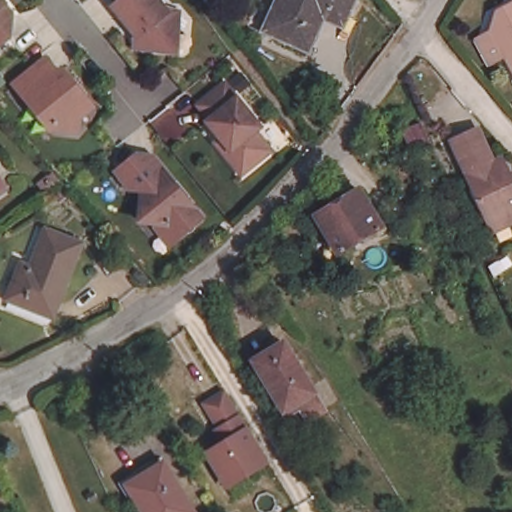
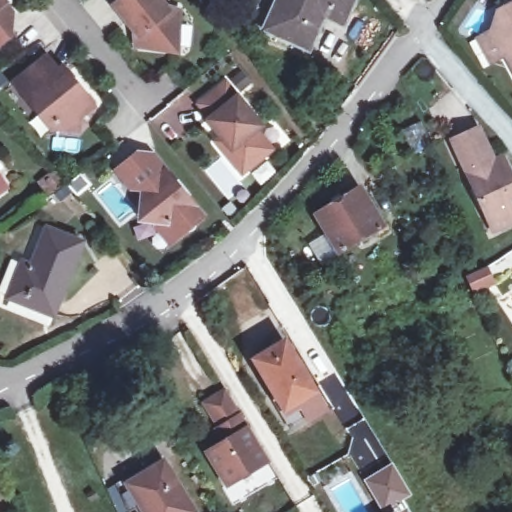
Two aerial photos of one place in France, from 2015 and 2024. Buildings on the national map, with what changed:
unchanged [(5,3),(12,12),(10,36),(0,44),(0,0),(4,0),(6,2),(5,3)]
unchanged [(156,0),(167,15),(179,16),(175,54),(143,50),(137,44),(139,39),(115,10),(127,0),(156,0)]
unchanged [(363,0),(354,23),(334,14),(319,49),(285,34),(276,30),(289,0),(363,0)]
unchanged [(494,32),(492,29),(497,11),(505,8),(512,4),(512,65),(506,53),(490,62),(479,40),(494,32)]
unchanged [(42,62),(54,76),(57,73),(87,110),(76,120),(74,136),(49,133),(50,128),(27,100),(22,103),(10,88),(42,62)]
unchanged [(222,137),(207,120),(211,117),(199,103),(226,82),(261,125),(256,129),(272,149),(242,173),(226,152),(216,141),(222,137)]
unchanged [(417,116),(427,138),(408,147),(397,124),(417,116)]
unchanged [(492,232),(489,225),(451,140),(478,127),(493,160),(501,157),(512,182),(512,214),(507,216),(511,224),(492,232)]
unchanged [(159,226),(145,225),(147,211),(149,194),(137,193),(122,175),(142,158),(157,160),(207,221),(184,240),(176,247),(159,226)]
unchanged [(48,191),(41,181),(47,177),(55,186),(48,191)]
unchanged [(0,199),(0,179),(10,192),(0,199)]
unchanged [(350,255),(326,218),(368,193),(391,230),(350,255)]
unchanged [(57,229),(91,242),(63,312),(19,295),(32,263),(42,267),(57,229)]
new [(484,268),(491,284),(471,293),(464,277),(484,268)]
unchanged [(289,332),(329,399),(299,417),(259,349),(289,332)]
unchanged [(223,395),(265,465),(226,489),(207,455),(224,445),(224,437),(205,406),(223,395)]
new [(391,461),(412,493),(382,510),(362,478),(391,461)]
unchanged [(174,463),(201,512),(154,512),(138,484),(174,463)]
new [(405,504),(410,512),(392,512),(405,504)]

